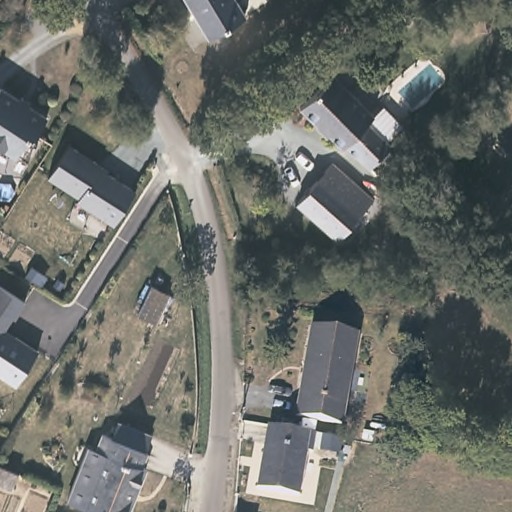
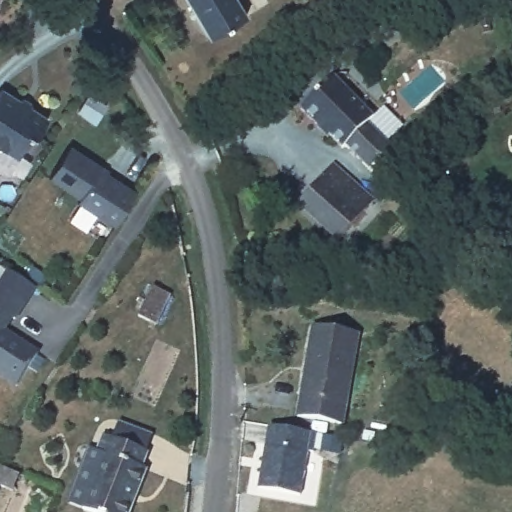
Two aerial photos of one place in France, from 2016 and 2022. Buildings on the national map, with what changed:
unchanged [(207,39),(185,0),(234,0),(245,18),(207,39)]
unchanged [(380,142),(391,153),(378,165),(368,155),(360,163),(336,138),(332,141),(310,118),(308,120),(291,102),(324,69),(363,108),(359,113),(384,139),(380,142)]
unchanged [(23,153),(8,144),(0,148),(0,93),(5,85),(45,119),(46,119),(45,119),(42,128),(40,127),(23,153)]
unchanged [(100,164),(97,166),(134,190),(112,224),(76,200),(78,196),(46,176),(68,144),(100,164)]
unchanged [(294,204),(333,162),(370,200),(331,240),(294,204)]
unchanged [(141,317),(149,302),(154,290),(170,297),(158,324),(141,317)]
unchanged [(13,323),(10,321),(0,337),(0,291),(24,306),(13,323)]
unchanged [(296,419),(311,325),(360,333),(345,427),(296,419)]
unchanged [(15,342),(36,356),(15,389),(0,380),(0,337),(9,343),(15,342)]
unchanged [(256,486),(264,443),(267,443),(270,427),(316,436),(312,453),(307,452),(299,497),(256,486)]
unchanged [(99,486),(85,481),(98,451),(106,454),(113,436),(151,452),(146,465),(151,467),(133,512),(93,512),(89,510),(99,486)]
unchanged [(0,489),(0,470),(19,478),(13,492),(1,487),(0,489)]

